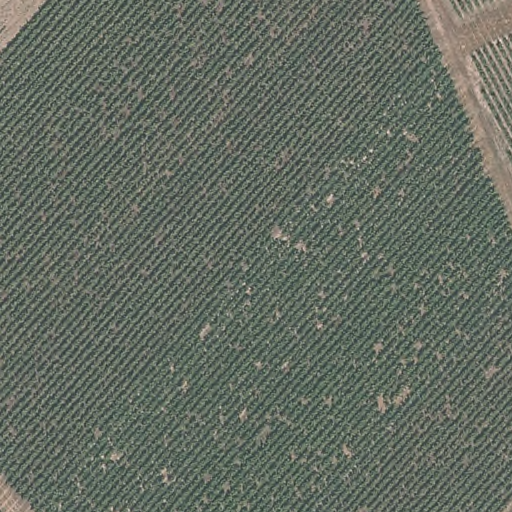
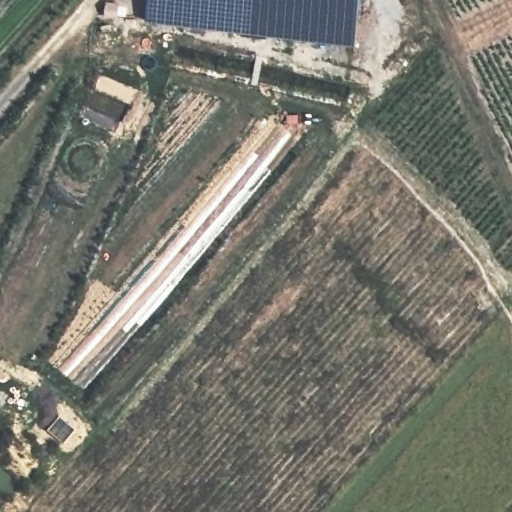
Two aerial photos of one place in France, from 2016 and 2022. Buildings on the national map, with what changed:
new [(151,0),(361,0),(356,45),(148,21),(151,0)]

